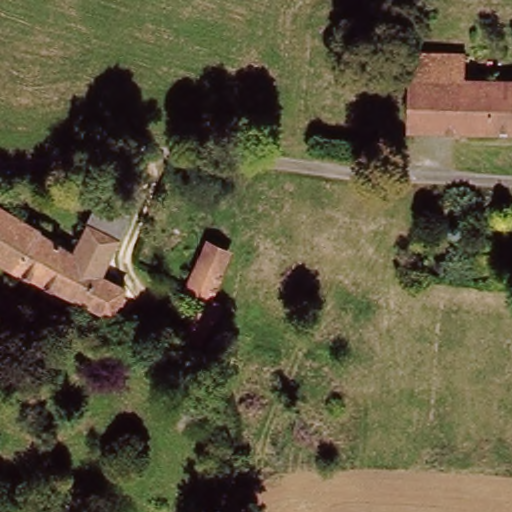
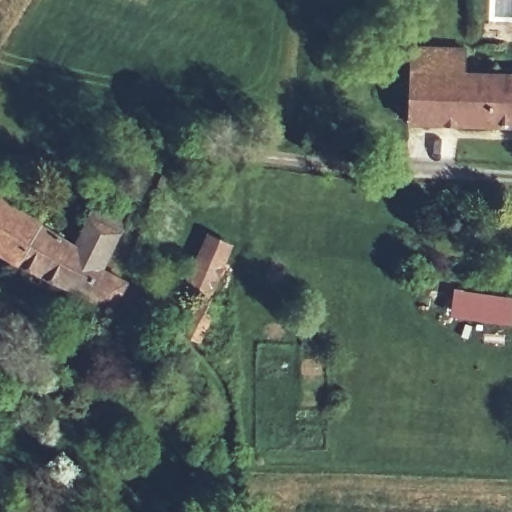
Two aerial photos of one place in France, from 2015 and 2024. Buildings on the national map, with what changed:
unchanged [(412,47),(465,49),(463,77),(512,79),(512,130),(407,127),(412,47)]
unchanged [(0,258),(0,207),(76,247),(102,205),(132,224),(109,257),(99,282),(119,293),(106,317),(0,258)]
unchanged [(218,353),(189,336),(185,342),(171,330),(200,274),(187,268),(205,235),(225,245),(210,277),(219,282),(197,321),(223,335),(218,353)]
new [(455,289),(512,297),(512,325),(451,317),(455,289)]
unchanged [(25,333),(0,320),(0,300),(33,317),(25,333)]

